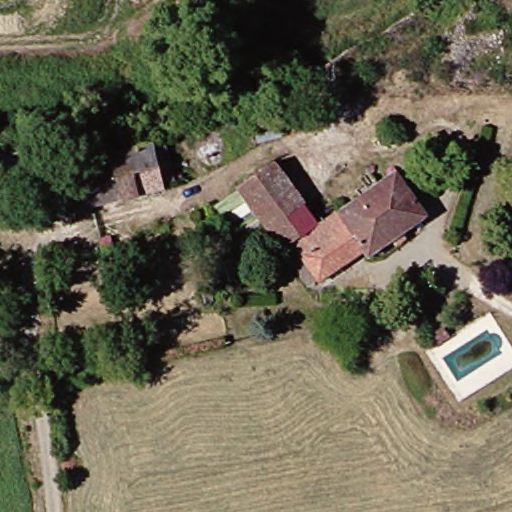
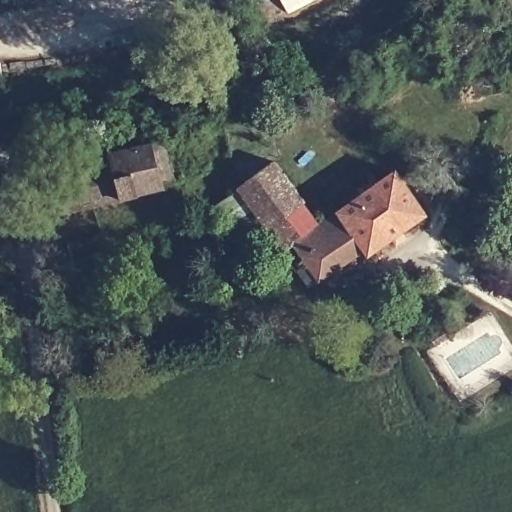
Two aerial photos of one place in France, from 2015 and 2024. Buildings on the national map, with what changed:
new [(101,0),(106,0),(101,1),(101,0)]
new [(279,0),(313,0),(286,14),(279,0)]
unchanged [(115,149),(116,154),(157,147),(170,192),(65,217),(51,164),(115,149)]
unchanged [(390,162),(424,214),(373,266),(368,258),(321,291),(295,257),(321,239),(390,162)]
unchanged [(295,257),(283,264),(270,249),(231,197),(271,171),(321,239),(295,257)]
unchanged [(456,360),(451,352),(463,342),(470,351),(456,360)]

